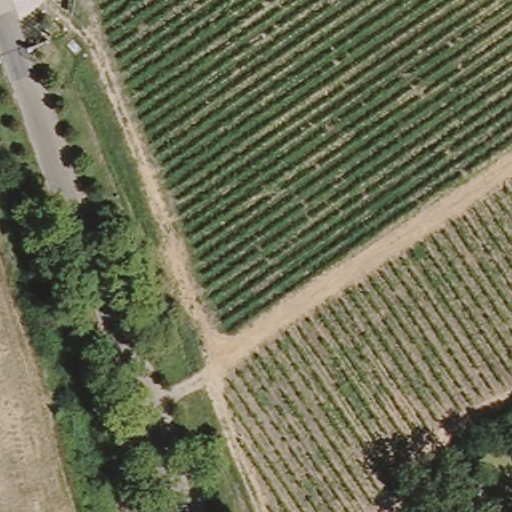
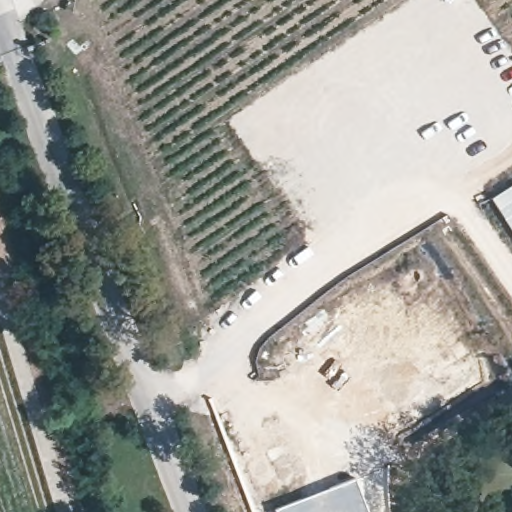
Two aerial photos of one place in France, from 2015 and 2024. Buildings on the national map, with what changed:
new [(356,477),(369,512),(268,512),(356,477)]

